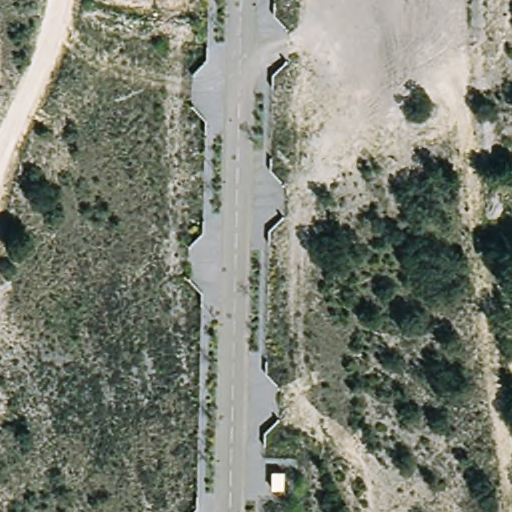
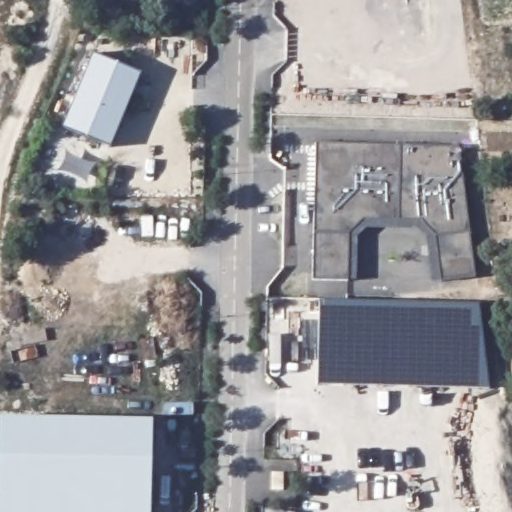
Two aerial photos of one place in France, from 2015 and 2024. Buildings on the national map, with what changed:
new [(137,70),(107,144),(60,124),(90,50),(137,70)]
new [(442,281),(436,237),(422,220),(363,219),(350,235),(349,280),(313,280),(315,144),(460,147),(475,277),(442,281)]
new [(488,387),(317,386),(320,302),(478,305),(488,387)]
new [(0,417),(152,420),(151,512),(0,512),(0,417)]
unchanged [(275,490),(275,472),(286,473),(285,491),(275,490)]

